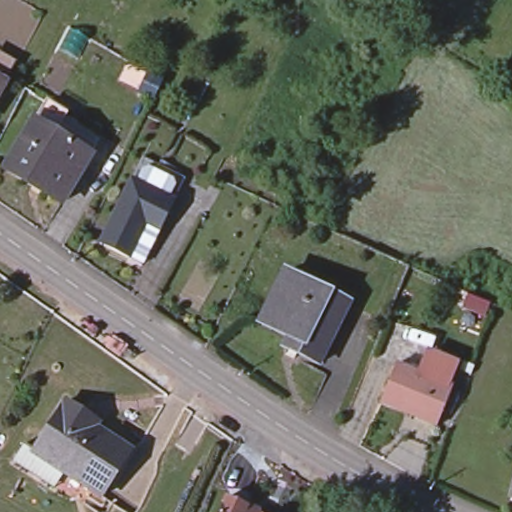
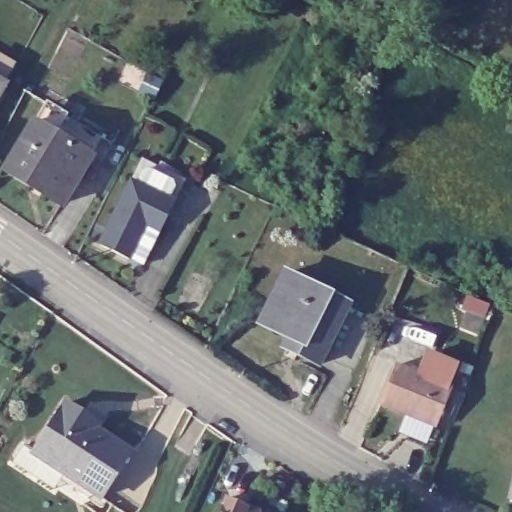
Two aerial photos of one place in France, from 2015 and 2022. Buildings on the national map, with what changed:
unchanged [(6,82),(0,93),(0,79),(6,82)]
unchanged [(49,202),(9,178),(1,173),(30,124),(35,116),(39,118),(78,143),(91,151),(87,158),(57,207),(49,202)]
unchanged [(124,185),(135,163),(177,184),(165,206),(124,185)]
unchanged [(120,261),(92,247),(124,185),(165,206),(150,235),(133,268),(120,261)]
unchanged [(318,364),(284,347),(288,338),(268,329),(266,327),(260,325),(287,272),(292,275),(295,276),(349,303),(318,364)]
unchanged [(393,367),(449,390),(434,430),(377,407),(393,367)]
unchanged [(97,498),(30,453),(63,404),(82,417),(80,422),(117,447),(127,453),(107,482),(97,498)]
unchanged [(512,478),(512,501),(506,500),(512,478)]
unchanged [(246,504),(258,510),(258,512),(218,512),(225,495),(246,504)]

